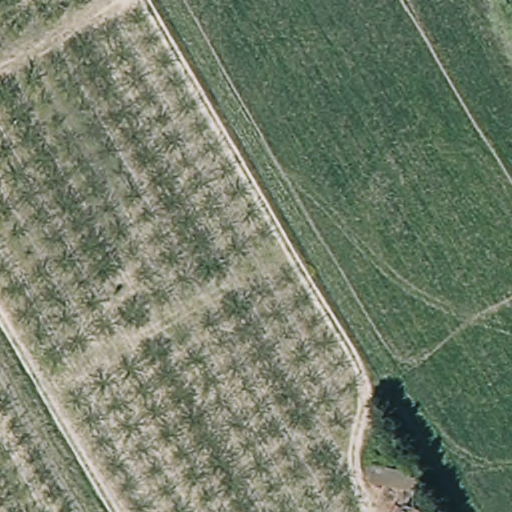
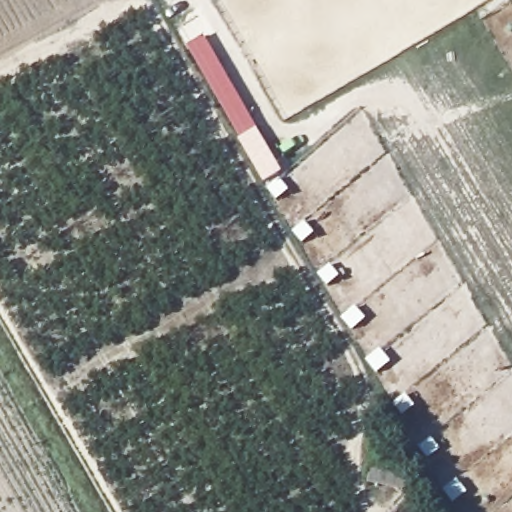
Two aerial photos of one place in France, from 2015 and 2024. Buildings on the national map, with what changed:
new [(259,128),(241,138),(188,46),(206,36),(259,128)]
unchanged [(418,478),(415,492),(369,483),(374,466),(418,478)]

